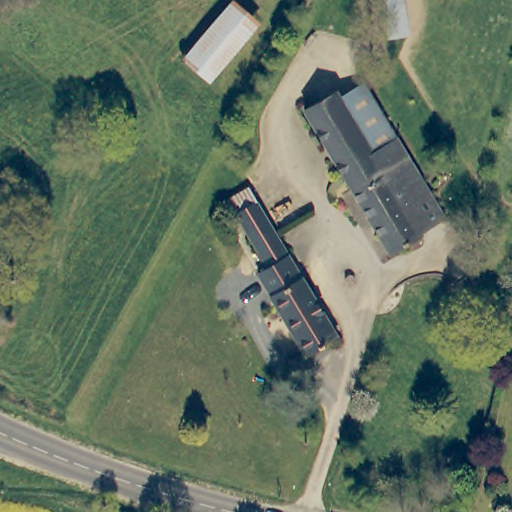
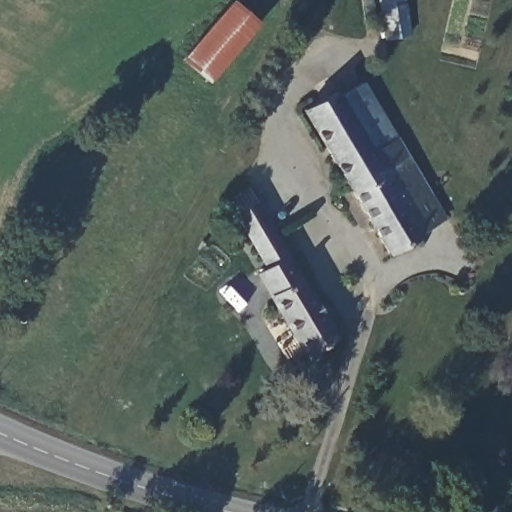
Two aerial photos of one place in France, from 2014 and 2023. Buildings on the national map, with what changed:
unchanged [(409,38),(388,42),(380,0),(401,0),(409,38)]
unchanged [(232,4),(257,25),(209,85),(185,64),(232,4)]
unchanged [(353,197),(303,114),(336,95),(339,100),(361,87),(407,166),(353,197)]
unchanged [(388,260),(353,197),(407,166),(442,226),(419,238),(421,241),(388,260)]
unchanged [(305,359),(257,276),(267,271),(236,217),(230,220),(222,205),(221,204),(222,202),(224,201),(247,188),(257,205),(336,341),(305,359)]

